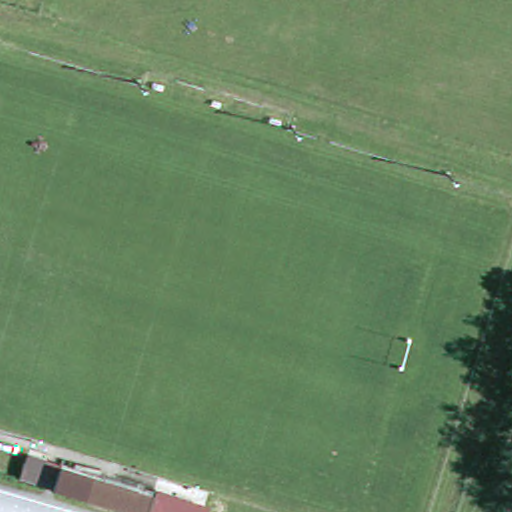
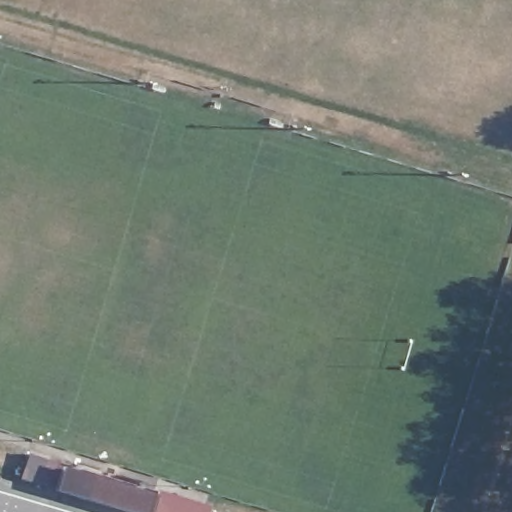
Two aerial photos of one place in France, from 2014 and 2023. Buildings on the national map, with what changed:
unchanged [(146,512),(112,512),(51,493),(58,468),(151,495),(146,512)]

